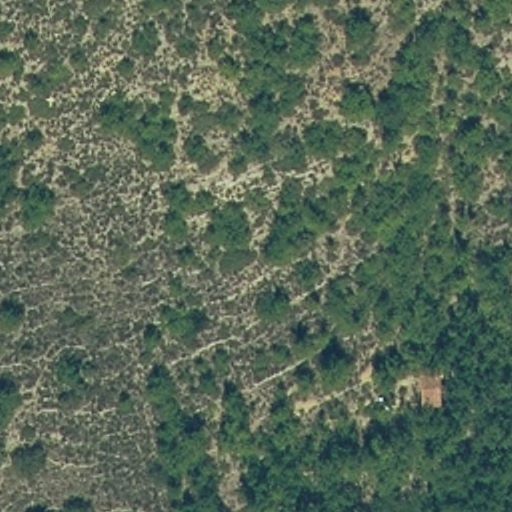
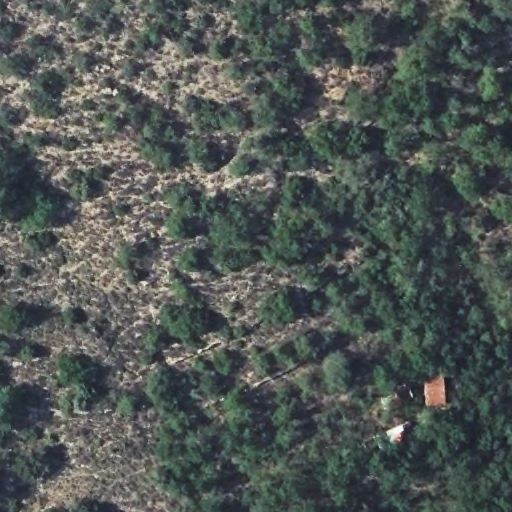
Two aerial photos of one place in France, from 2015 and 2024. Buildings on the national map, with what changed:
unchanged [(420,408),(423,366),(447,366),(448,410),(420,408)]

